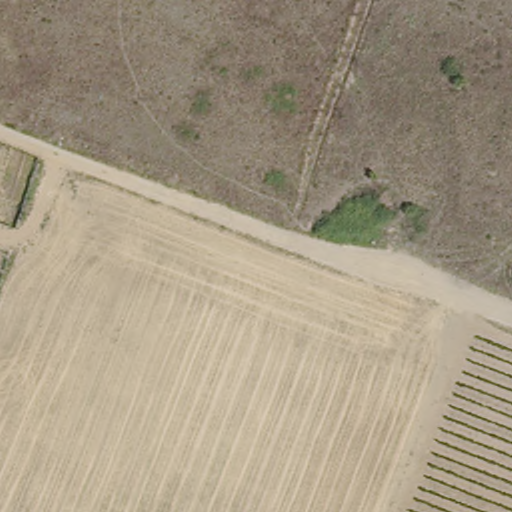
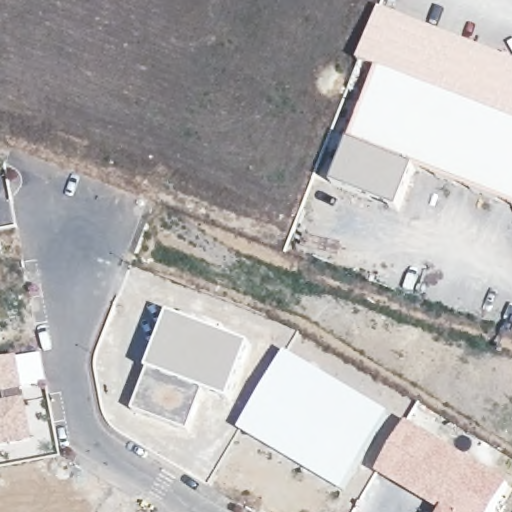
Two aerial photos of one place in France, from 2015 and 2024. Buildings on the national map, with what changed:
new [(358,64),(378,7),(460,37),(512,57),(512,205),(416,167),(349,142),(377,71),(358,64)]
new [(349,142),(416,167),(399,211),(332,185),(349,142)]
new [(171,312),(210,325),(254,345),(231,405),(205,395),(147,371),(171,312)]
new [(286,351),(392,415),(343,495),(237,432),(286,351)]
new [(20,357),(24,388),(24,392),(0,397),(0,360),(20,357)]
new [(147,371),(205,395),(190,435),(133,412),(147,371)]
new [(6,402),(5,396),(23,392),(24,399),(27,399),(34,441),(0,449),(0,403),(6,402)]
new [(463,455),(510,485),(495,512),(438,512),(377,474),(408,423),(463,455)]

